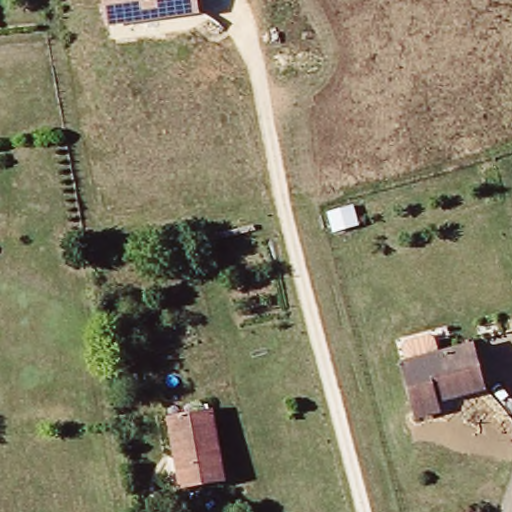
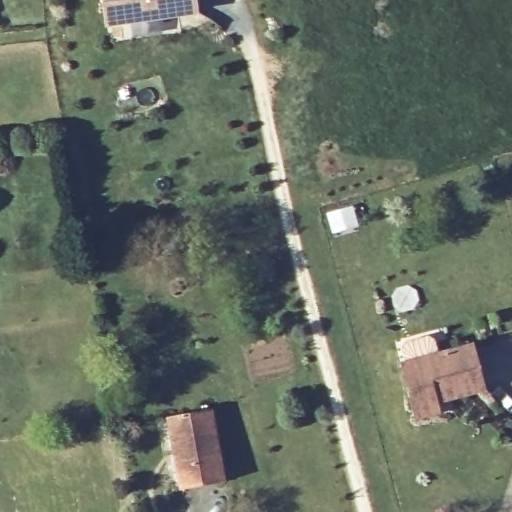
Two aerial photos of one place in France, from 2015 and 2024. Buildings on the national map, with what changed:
unchanged [(198,0),(200,15),(107,29),(102,0),(198,0)]
unchanged [(419,415),(416,406),(404,362),(407,361),(403,346),(407,340),(431,334),(437,339),(440,352),(421,357),(476,343),(488,386),(440,399),(443,408),(419,415)]
unchanged [(172,418),(215,412),(224,478),(181,484),(172,418)]

